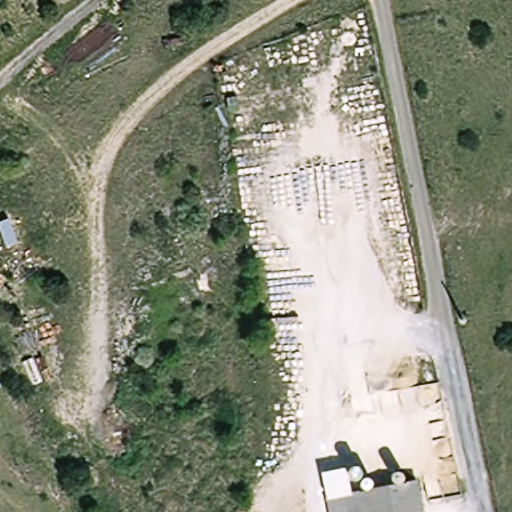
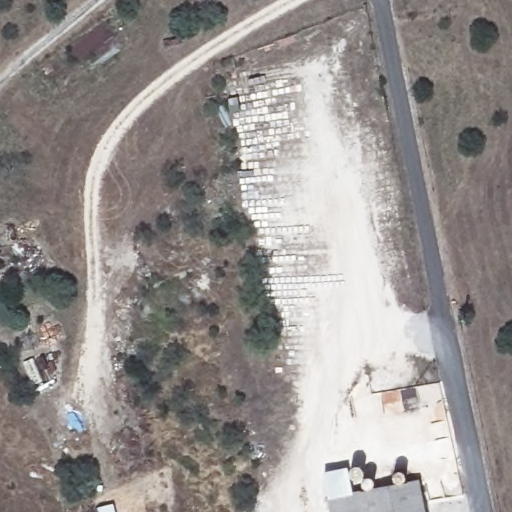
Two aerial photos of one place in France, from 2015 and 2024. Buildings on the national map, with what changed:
unchanged [(413,477),(420,512),(324,512),(322,500),(413,477)]

